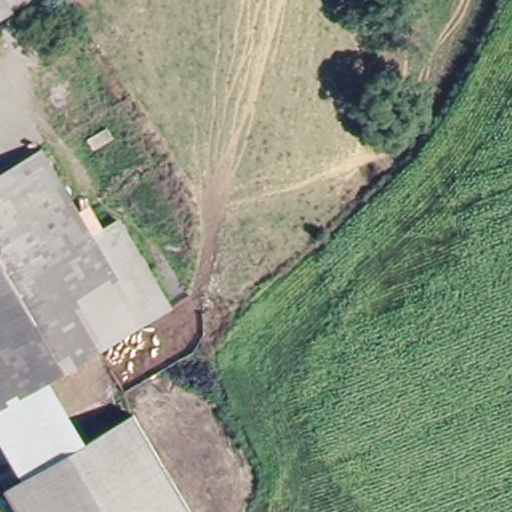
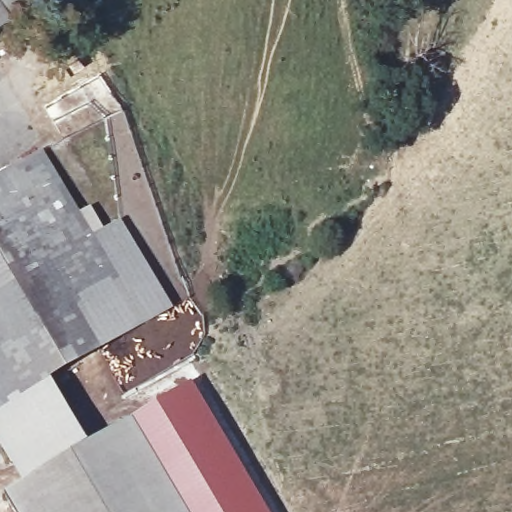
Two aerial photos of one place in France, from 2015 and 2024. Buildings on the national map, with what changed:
unchanged [(0,21),(0,0),(34,0),(0,21)]
unchanged [(0,356),(0,172),(70,130),(173,302),(23,394),(0,356)]
unchanged [(0,407),(0,356),(23,394),(0,407)]
unchanged [(25,486),(0,443),(0,407),(23,394),(47,379),(85,450),(25,486)]
new [(188,512),(133,421),(191,383),(267,512),(188,512)]
unchanged [(188,512),(12,512),(4,499),(85,450),(133,421),(188,512)]

